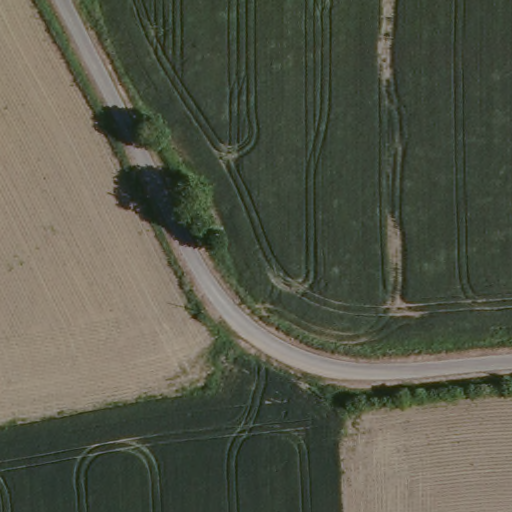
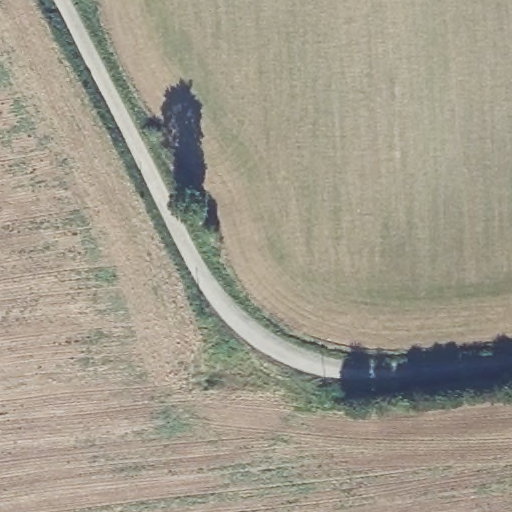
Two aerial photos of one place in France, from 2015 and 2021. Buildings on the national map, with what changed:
[]

